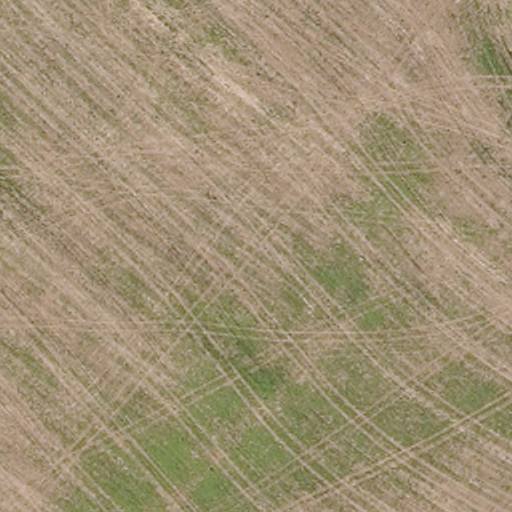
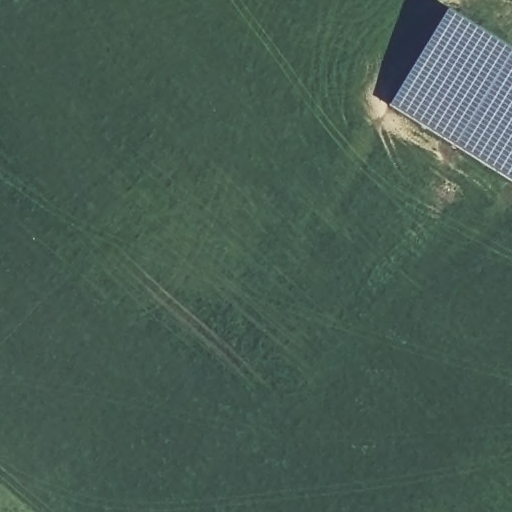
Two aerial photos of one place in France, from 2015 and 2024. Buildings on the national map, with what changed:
new [(391,105),(451,11),(512,49),(512,179),(391,105)]

